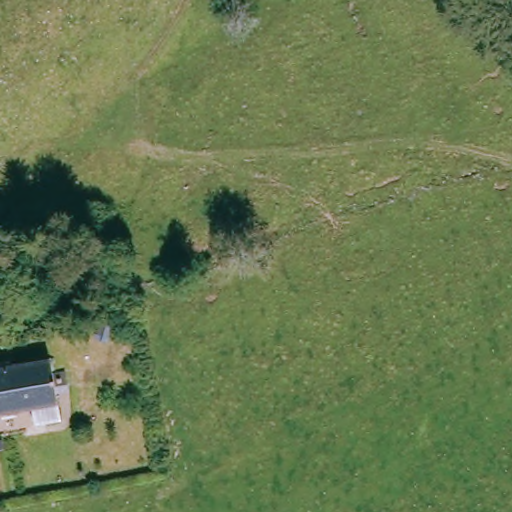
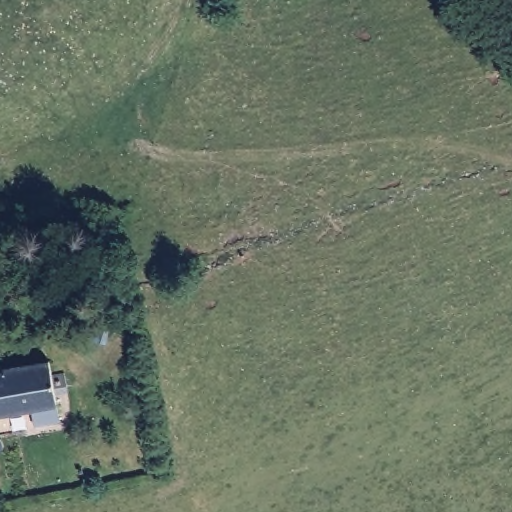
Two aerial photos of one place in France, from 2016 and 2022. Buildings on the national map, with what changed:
unchanged [(15,370),(51,365),(54,380),(67,378),(69,391),(55,393),(61,426),(47,428),(35,430),(34,414),(0,419),(0,351),(12,349),(15,370)]

